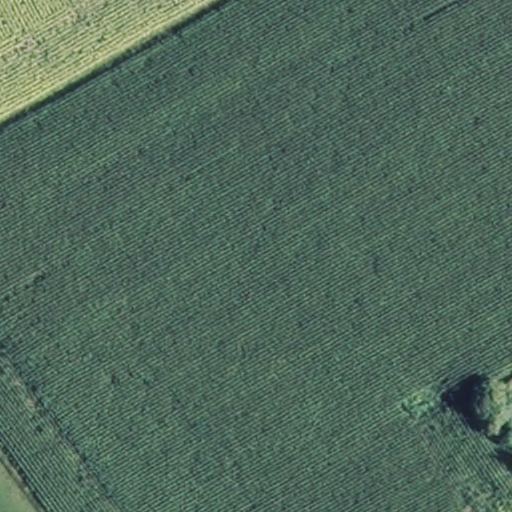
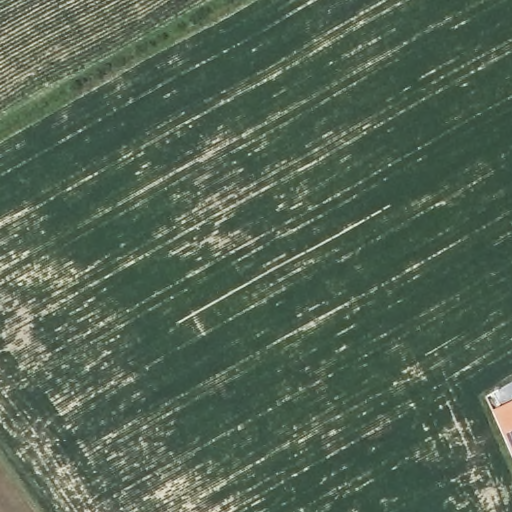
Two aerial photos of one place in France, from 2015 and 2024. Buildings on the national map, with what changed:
new [(512,402),(512,452),(493,410),(512,402)]

